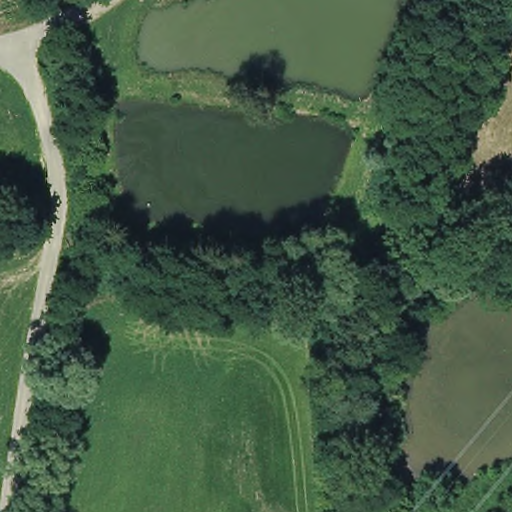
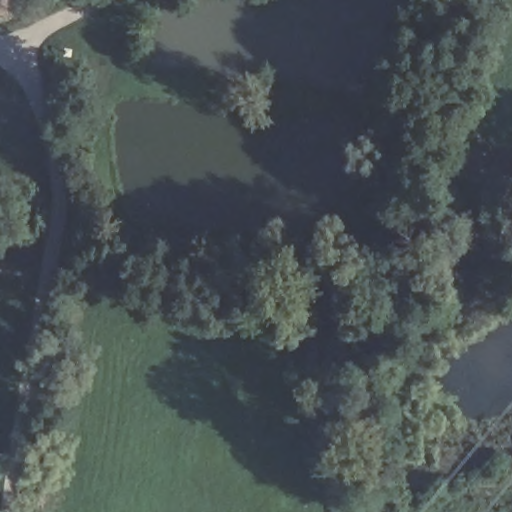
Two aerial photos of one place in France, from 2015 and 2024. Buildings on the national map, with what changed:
unchanged [(410,296),(382,308),(375,291),(402,279),(410,296)]

